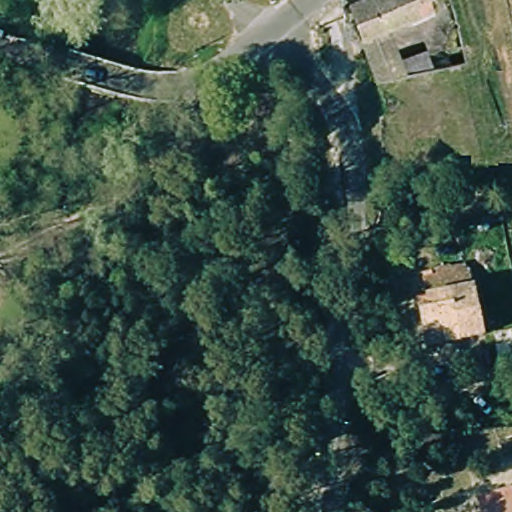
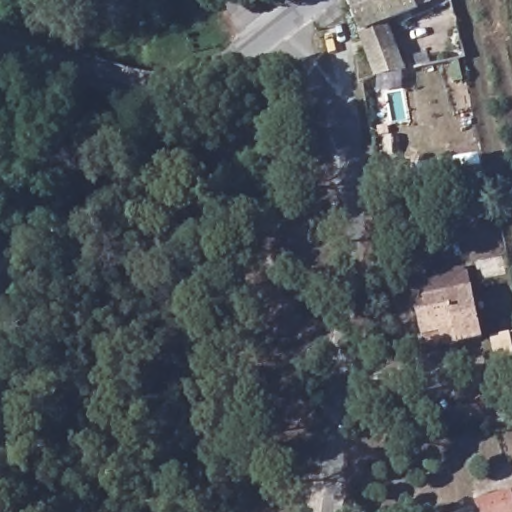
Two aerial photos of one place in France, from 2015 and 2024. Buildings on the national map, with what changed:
unchanged [(406,72),(379,81),(349,0),(416,0),(422,14),(389,26),(399,52),(429,44),(437,63),(406,72)]
unchanged [(430,340),(424,341),(419,317),(436,312),(434,302),(428,285),(471,275),(476,293),(489,342),(449,351),(434,355),(430,340)]
unchanged [(484,507),(512,498),(512,512),(485,512),(484,507)]

